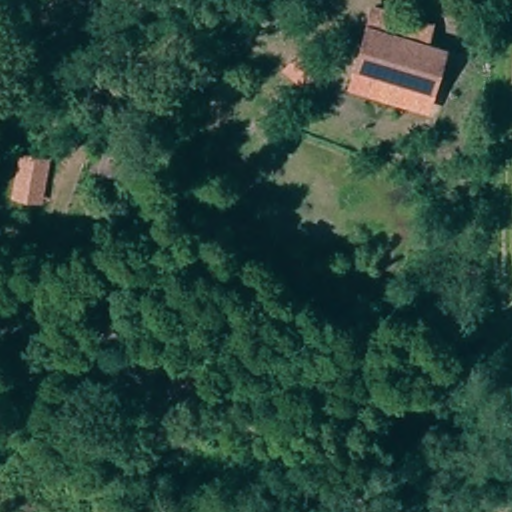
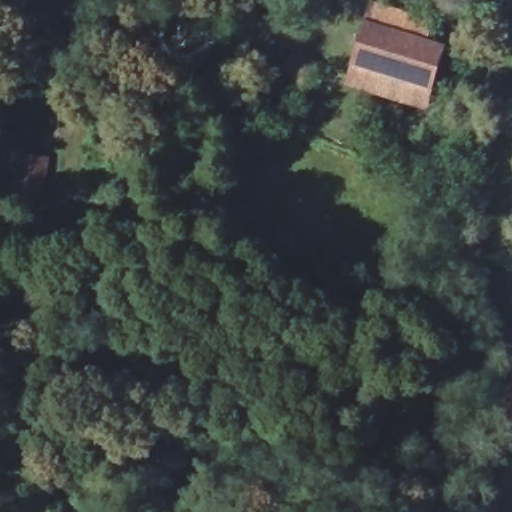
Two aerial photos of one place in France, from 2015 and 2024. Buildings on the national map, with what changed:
unchanged [(432,25),(426,46),(445,52),(427,109),(350,85),(374,7),(432,25)]
unchanged [(314,72),(308,80),(290,67),(295,58),(314,72)]
unchanged [(32,211),(34,201),(39,202),(61,206),(54,248),(27,243),(32,211)]

